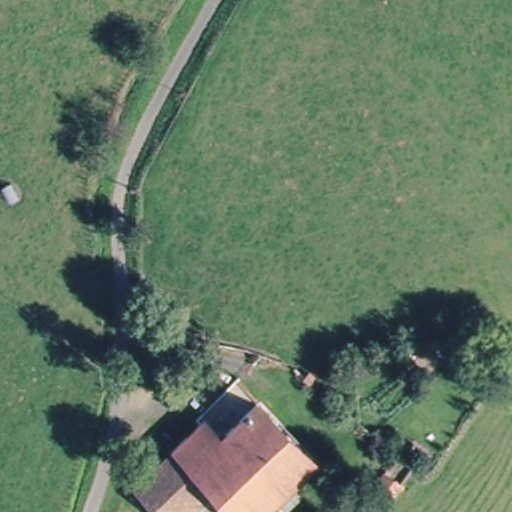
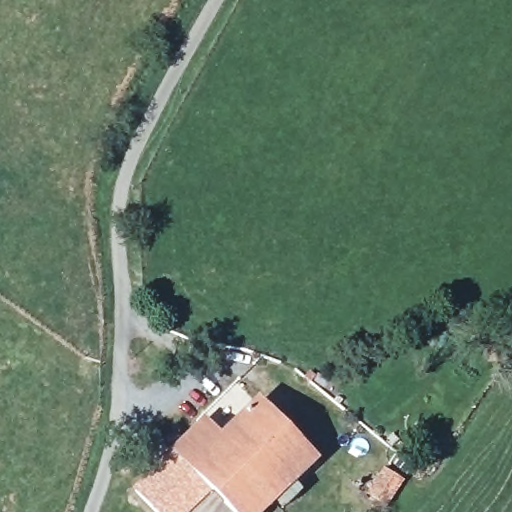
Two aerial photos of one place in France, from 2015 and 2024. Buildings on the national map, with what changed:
unchanged [(220,442),(259,402),(313,454),(282,486),(288,492),(269,512),(264,507),(259,512),(212,512),(201,501),(189,512),(154,512),(132,491),(199,423),(220,442)]
unchanged [(372,510),(360,495),(378,480),(391,495),(372,510)]

